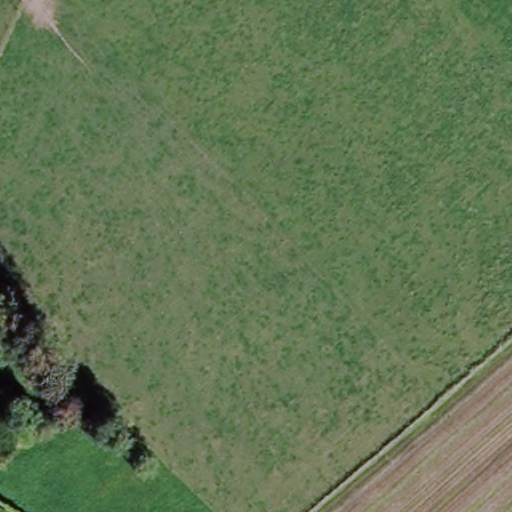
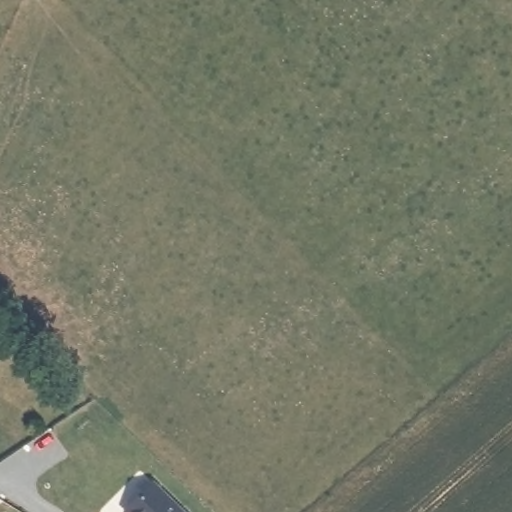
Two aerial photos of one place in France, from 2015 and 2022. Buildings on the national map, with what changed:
new [(152,475),(189,512),(132,512),(124,504),(152,475)]

